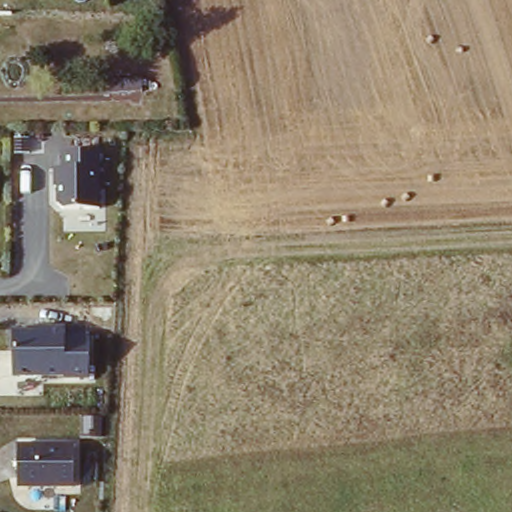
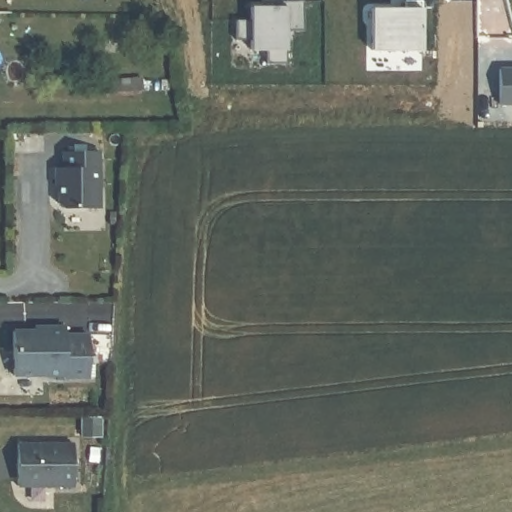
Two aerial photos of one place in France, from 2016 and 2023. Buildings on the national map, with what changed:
new [(252,38),(238,38),(238,18),(252,18),(253,5),(264,5),(264,0),(305,0),(305,29),(288,29),(288,62),(268,62),(268,47),(252,47),(252,38)]
new [(371,10),(404,8),(404,1),(422,2),(420,51),(371,50),(371,10)]
unchanged [(56,204),(56,187),(53,187),(53,170),(59,169),(60,154),(100,153),(99,210),(64,210),(56,204)]
unchanged [(32,332),(33,327),(64,327),(65,337),(88,336),(88,382),(63,382),(64,378),(11,378),(11,332),(32,332)]
unchanged [(74,445),(73,489),(16,488),(16,446),(74,445)]

